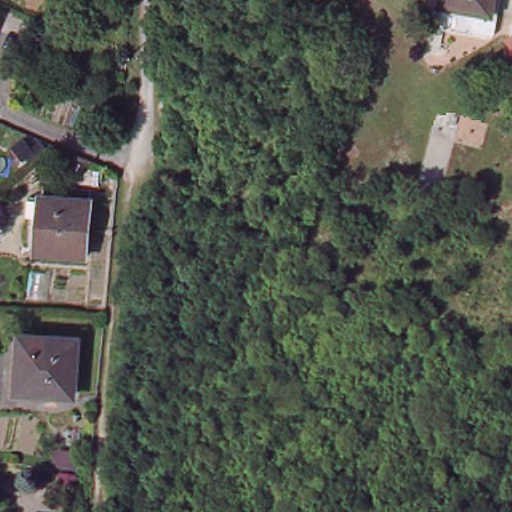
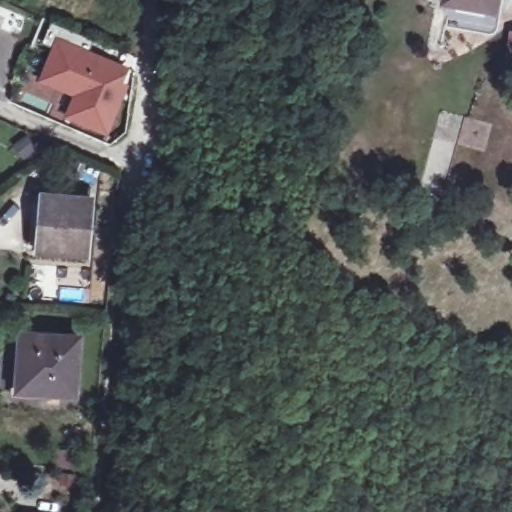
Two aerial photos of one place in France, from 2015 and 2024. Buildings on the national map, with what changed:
unchanged [(444,0),(487,0),(486,7),(444,0)]
new [(131,69),(123,85),(131,87),(109,136),(64,120),(73,97),(38,83),(58,39),(131,69)]
unchanged [(94,200),(89,256),(41,252),(48,186),(93,189),(92,199),(94,200)]
unchanged [(20,392),(23,335),(79,340),(75,396),(20,392)]
unchanged [(58,465),(59,453),(80,456),(78,468),(58,465)]

